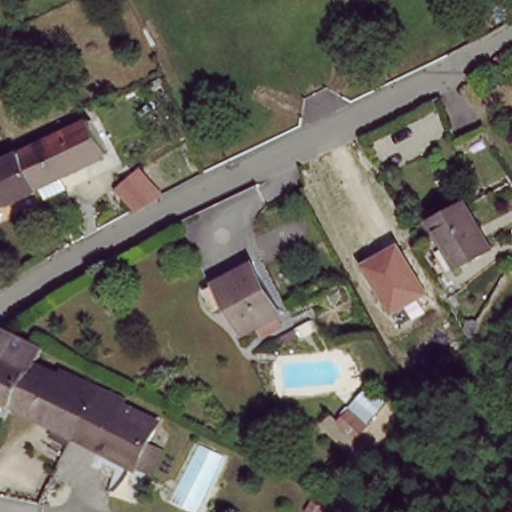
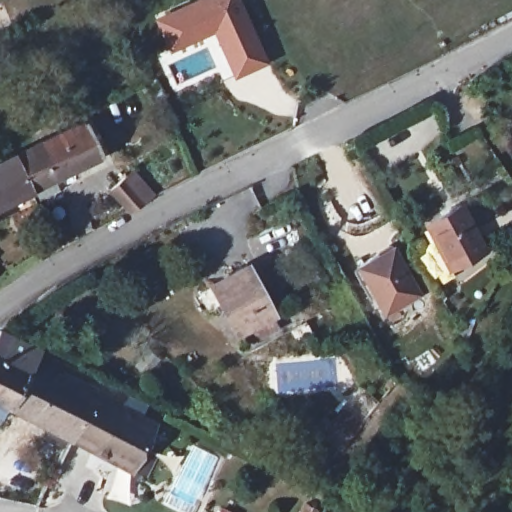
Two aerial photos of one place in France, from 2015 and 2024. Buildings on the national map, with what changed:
new [(169,51),(153,18),(191,0),(237,0),(267,62),(233,76),(211,30),(169,51)]
unchanged [(73,124),(92,158),(21,193),(3,158),(73,124)]
unchanged [(0,203),(0,159),(3,158),(21,193),(0,203)]
unchanged [(145,200),(124,211),(104,189),(113,181),(105,172),(112,166),(145,200)]
unchanged [(476,245),(442,263),(431,244),(435,242),(422,218),(454,200),(476,245)]
unchanged [(393,244),(421,295),(383,316),(355,265),(393,244)]
unchanged [(204,284),(240,265),(258,299),(263,297),(271,313),(231,334),(204,284)]
unchanged [(16,339),(36,349),(30,360),(23,373),(18,371),(0,362),(0,332),(16,339)]
unchanged [(65,436),(0,402),(0,362),(18,371),(23,373),(30,360),(35,363),(52,372),(54,366),(91,387),(65,436)]
unchanged [(139,473),(126,467),(65,436),(91,387),(115,399),(114,404),(149,422),(138,443),(151,449),(139,473)]
unchanged [(312,429),(321,419),(349,439),(340,450),(312,429)]

